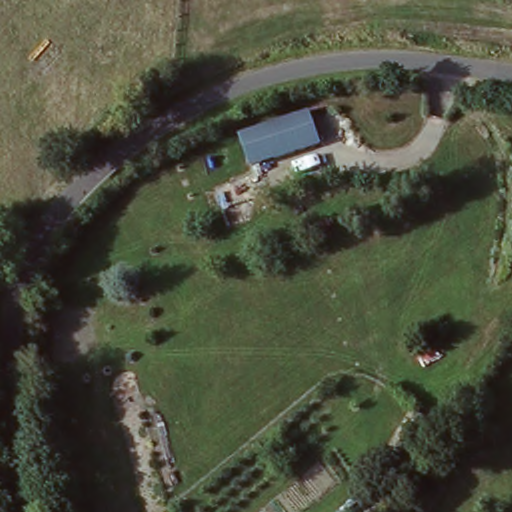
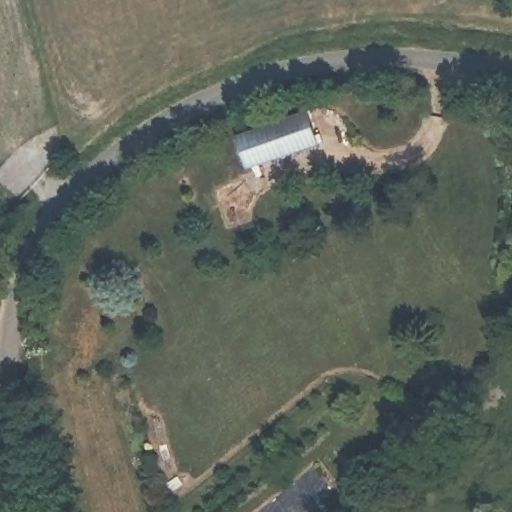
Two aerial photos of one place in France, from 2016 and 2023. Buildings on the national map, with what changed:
unchanged [(241,131),(308,119),(313,150),(245,162),(241,131)]

